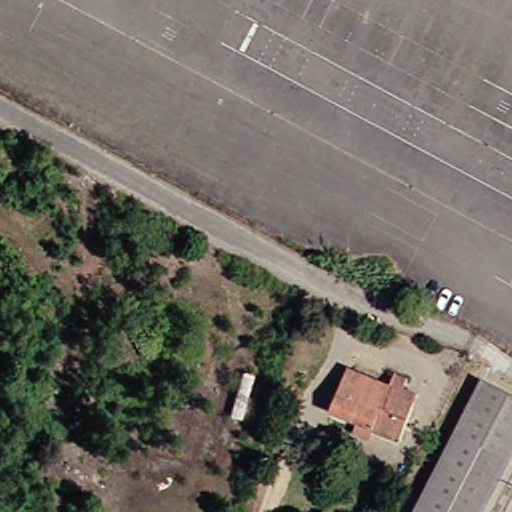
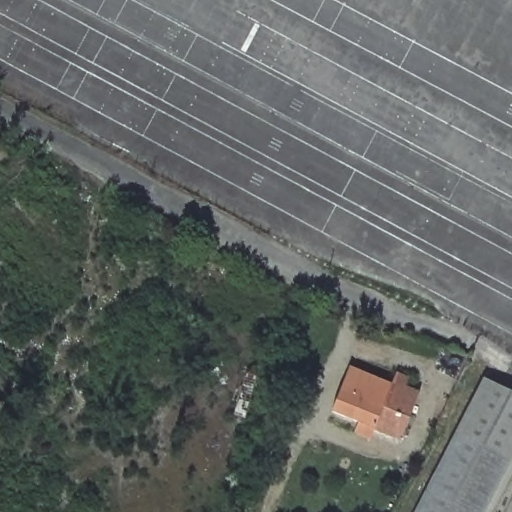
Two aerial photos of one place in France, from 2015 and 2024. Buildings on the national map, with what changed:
unchanged [(348,435),(352,425),(325,414),(343,370),(385,387),(390,375),(402,380),(398,390),(413,396),(394,442),(368,432),(364,442),(348,435)]
unchanged [(477,377),(512,392),(512,436),(502,459),(450,434),(477,377)]
unchanged [(450,434),(502,459),(475,512),(408,512),(450,434)]

